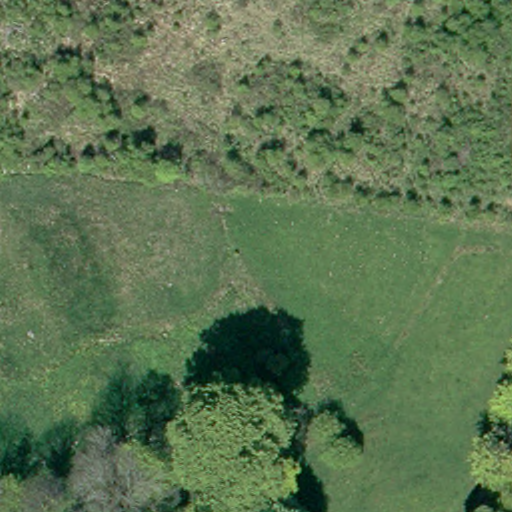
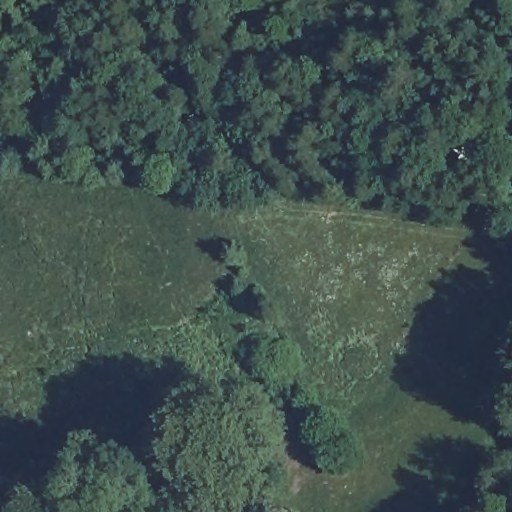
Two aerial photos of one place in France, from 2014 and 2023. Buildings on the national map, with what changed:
[]

